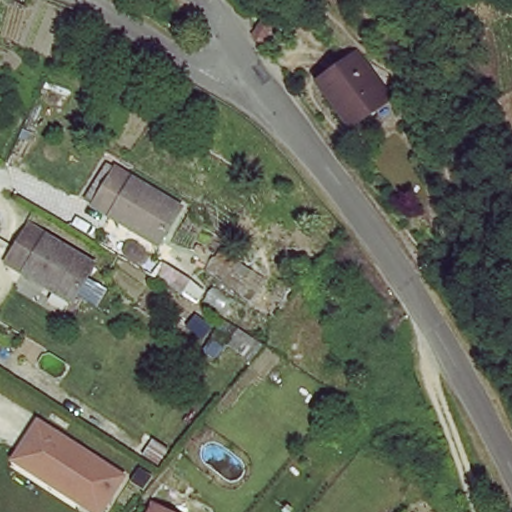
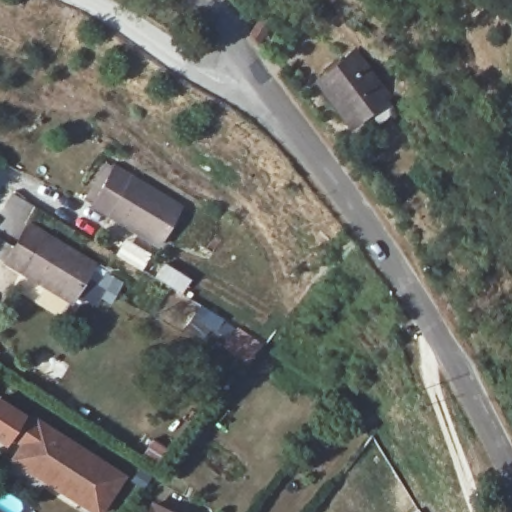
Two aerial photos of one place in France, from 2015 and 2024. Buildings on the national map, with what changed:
unchanged [(249,3),(261,11),(246,32),(234,23),(249,3)]
unchanged [(388,90),(354,124),(313,83),(346,49),(388,90)]
unchanged [(182,206),(162,243),(97,204),(117,167),(182,206)]
unchanged [(92,260),(71,296),(8,257),(29,221),(92,260)]
new [(10,439),(5,446),(0,443),(0,398),(27,416),(33,420),(19,445),(10,439)]
unchanged [(102,512),(99,512),(10,460),(36,414),(130,471),(102,512)]
unchanged [(149,512),(155,501),(176,512),(149,512)]

